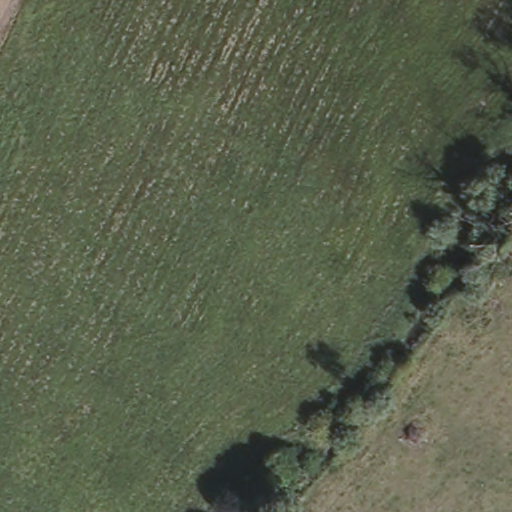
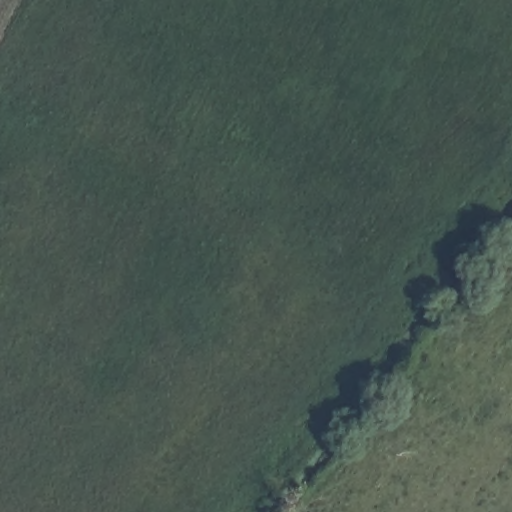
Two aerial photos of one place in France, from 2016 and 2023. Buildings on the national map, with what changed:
[]

